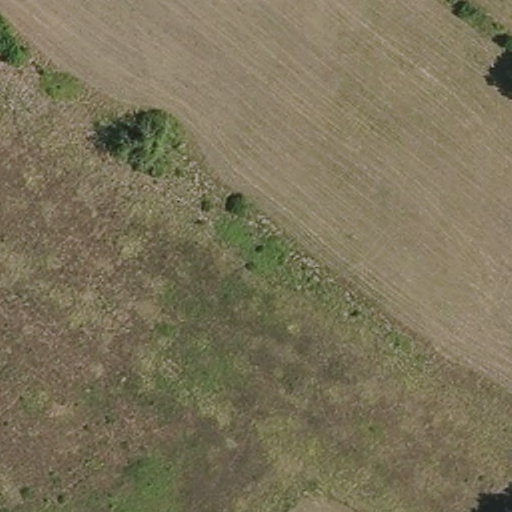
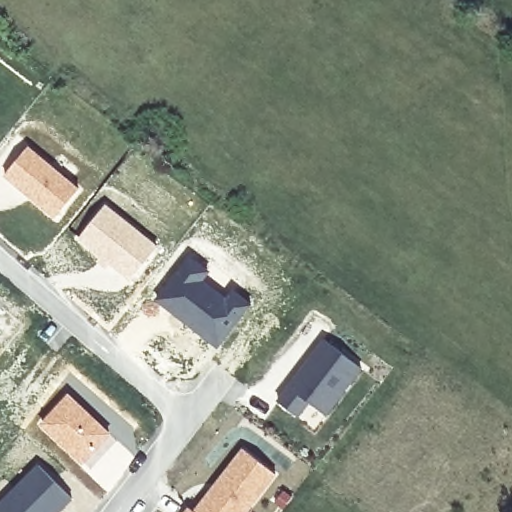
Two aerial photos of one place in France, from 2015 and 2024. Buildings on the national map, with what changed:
new [(30,146),(79,189),(59,215),(8,173),(30,146)]
new [(105,202),(158,245),(130,281),(75,239),(105,202)]
new [(188,253),(210,272),(206,278),(225,294),(232,287),(253,304),(216,349),(151,298),(188,253)]
new [(318,346),(354,374),(319,421),(302,408),(290,422),(272,407),(318,346)]
new [(67,391),(113,434),(83,466),(36,424),(67,391)]
new [(214,485),(240,451),(273,476),(247,510),(249,512),(200,512),(218,488),(214,485)]
new [(73,498),(59,512),(0,512),(0,500),(37,462),(73,498)]

